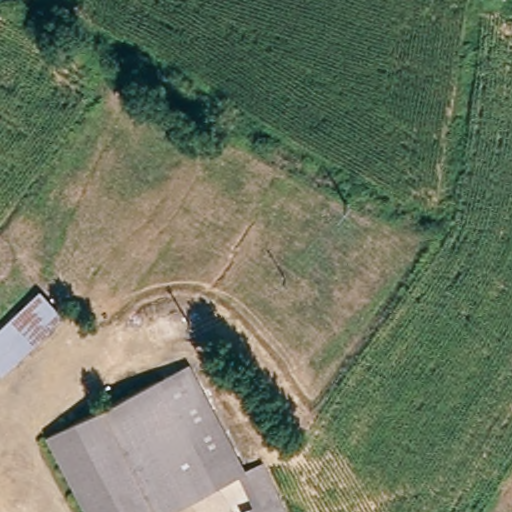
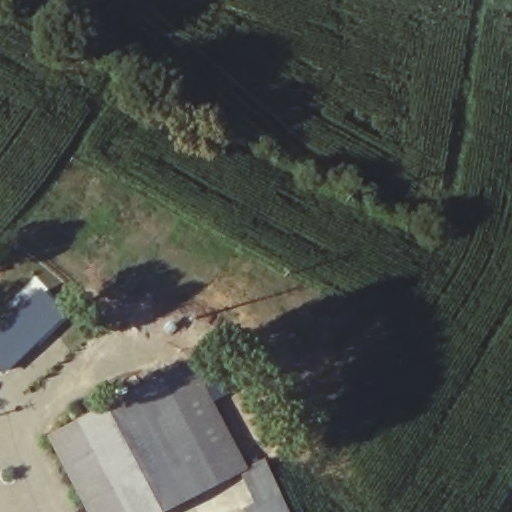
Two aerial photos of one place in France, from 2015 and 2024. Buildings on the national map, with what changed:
unchanged [(57,315),(2,376),(0,374),(0,325),(33,289),(57,315)]
unchanged [(182,364),(187,362),(196,379),(242,468),(162,512),(86,512),(47,435),(182,364)]
unchanged [(242,506),(250,503),(242,468),(252,466),(271,461),(281,497),(285,512),(244,512),(242,506)]

